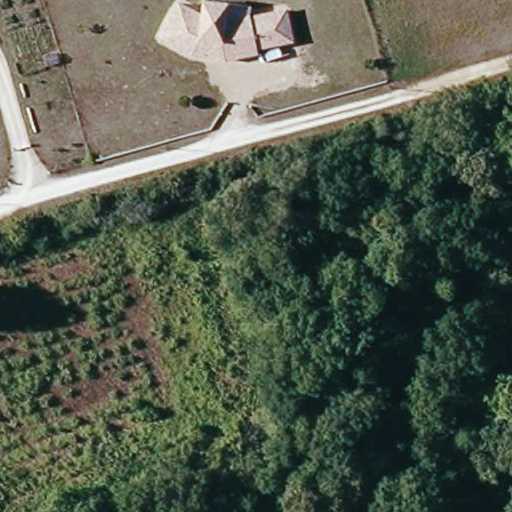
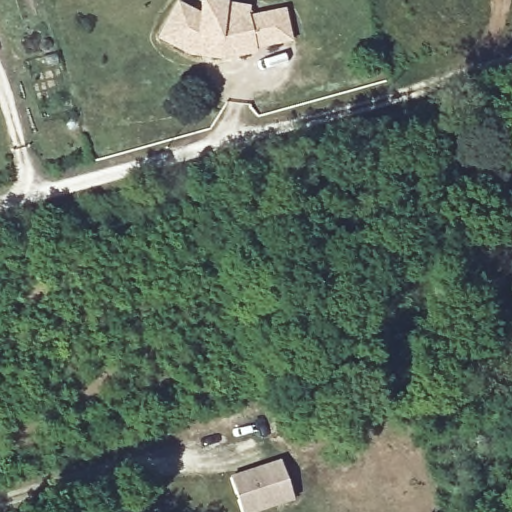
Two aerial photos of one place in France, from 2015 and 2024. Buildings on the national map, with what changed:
unchanged [(199,0),(210,0),(225,1),(224,20),(245,15),(249,20),(283,12),(290,44),(254,50),(255,55),(213,63),(210,55),(192,56),(157,40),(176,4),(197,17),(199,0)]
new [(293,502),(264,512),(240,512),(229,478),(279,461),(293,502)]

